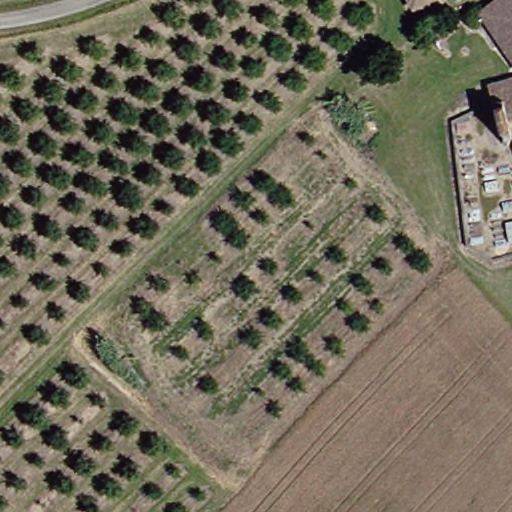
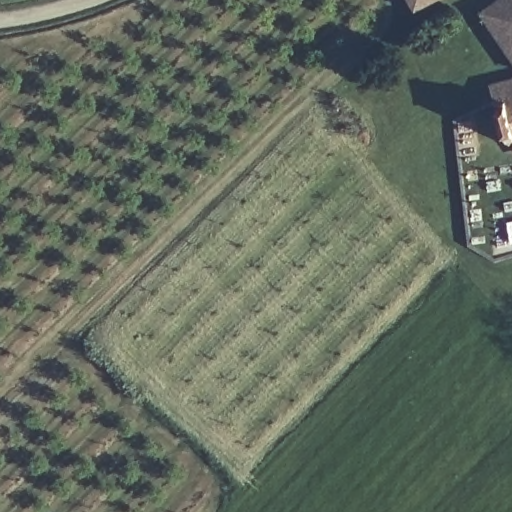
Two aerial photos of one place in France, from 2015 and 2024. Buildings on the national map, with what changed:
unchanged [(398,0),(438,0),(406,17),(398,0)]
unchanged [(495,0),(512,0),(512,71),(471,20),(495,0)]
unchanged [(512,79),(512,144),(506,145),(499,147),(488,106),(483,86),(512,79)]
unchanged [(512,162),(509,162),(506,145),(512,144),(512,162)]

